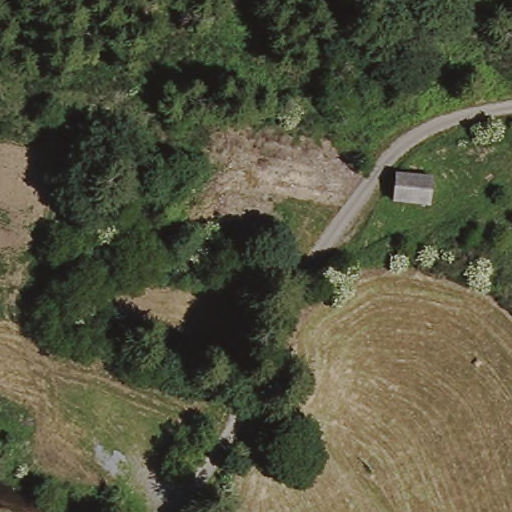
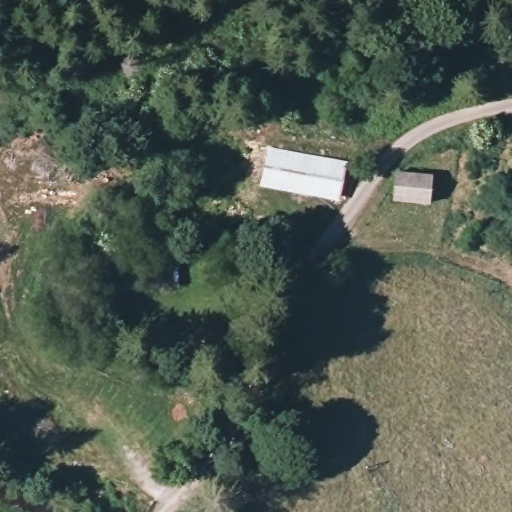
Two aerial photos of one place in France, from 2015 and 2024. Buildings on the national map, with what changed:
new [(340,200),(260,185),(267,146),(346,161),(340,200)]
unchanged [(433,194),(396,188),(400,161),(436,167),(433,194)]

